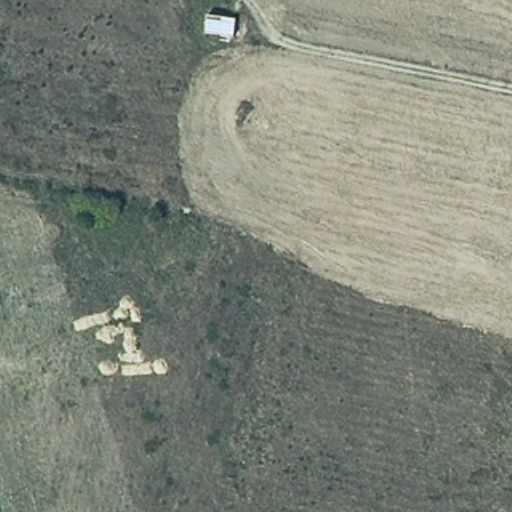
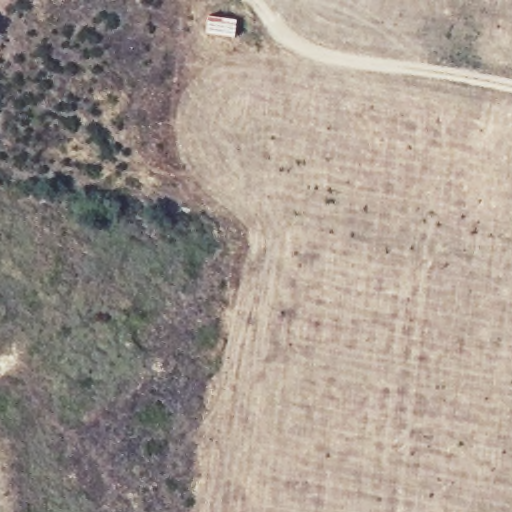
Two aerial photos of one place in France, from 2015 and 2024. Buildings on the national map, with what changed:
unchanged [(210,15),(237,19),(236,28),(235,36),(207,32),(209,22),(210,15)]

